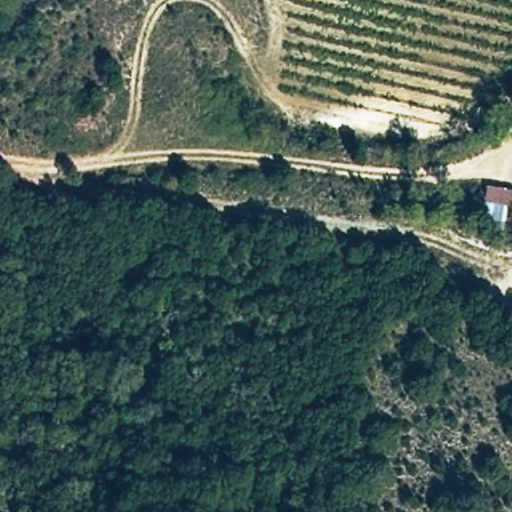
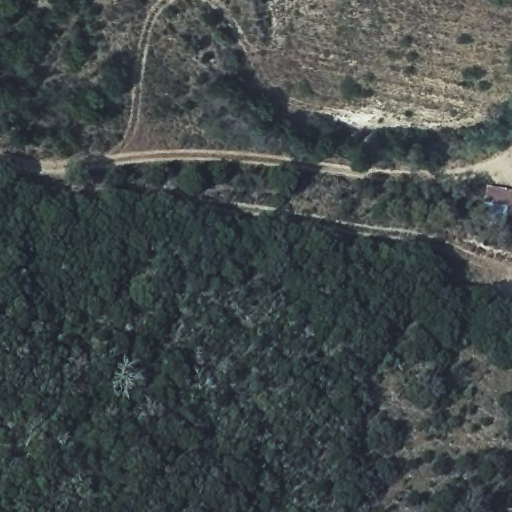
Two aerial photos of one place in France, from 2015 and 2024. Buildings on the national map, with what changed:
unchanged [(505,229),(474,224),(479,197),(511,199),(505,229)]

